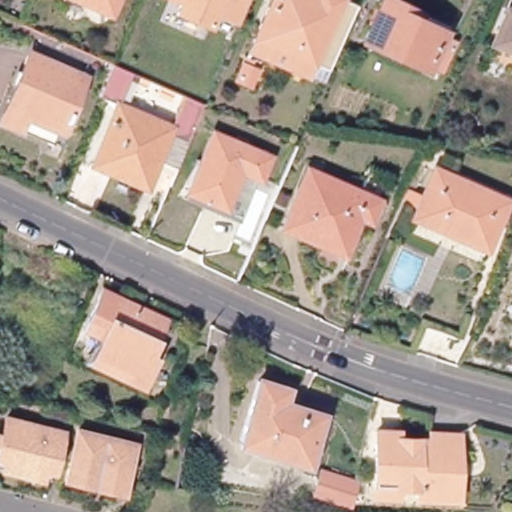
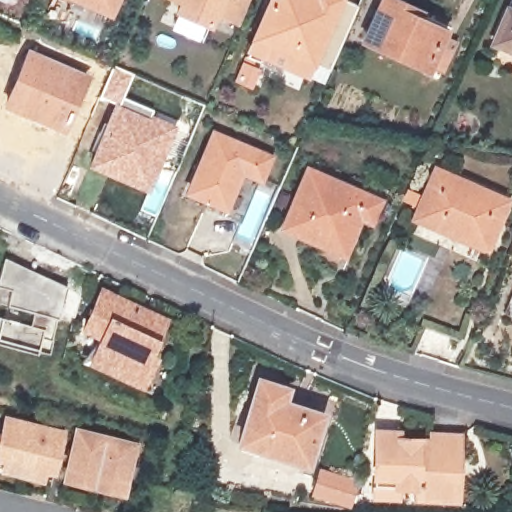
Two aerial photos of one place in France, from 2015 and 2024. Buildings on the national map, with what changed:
unchanged [(111,14),(78,0),(117,0),(111,14)]
unchanged [(215,12),(209,25),(178,12),(182,2),(177,0),(249,0),(239,22),(215,12)]
unchanged [(301,69),(245,44),(265,0),(353,0),(324,64),(319,76),(301,69)]
unchanged [(431,74),(417,67),(356,40),(373,0),(383,0),(404,10),(401,16),(433,30),(447,36),(431,74)]
unchanged [(494,43),(508,9),(512,10),(512,51),(494,43)]
unchanged [(249,54),(246,61),(252,64),(246,80),(232,74),(242,50),(249,54)]
unchanged [(86,77),(61,133),(25,117),(20,130),(0,122),(30,53),(86,77)]
unchanged [(119,111),(173,133),(184,100),(204,110),(188,147),(170,140),(148,194),(131,186),(136,175),(115,166),(110,177),(93,170),(118,110),(99,102),(113,70),(132,78),(119,111)]
unchanged [(189,185),(214,126),(269,150),(240,216),(221,208),(185,192),(189,185)]
unchanged [(379,200),(371,220),(360,215),(344,252),(283,226),(308,169),(379,200)]
unchanged [(421,218),(426,207),(411,201),(415,192),(430,198),(441,171),(511,200),(491,247),(421,218)]
new [(8,303),(0,301),(0,269),(3,256),(80,291),(74,314),(58,310),(49,351),(39,348),(37,353),(0,343),(0,315),(7,317),(8,303)]
unchanged [(74,360),(71,360),(75,358),(99,343),(101,338),(85,331),(89,322),(102,295),(164,324),(148,359),(154,361),(144,382),(104,363),(101,370),(74,360)]
unchanged [(307,465),(239,442),(259,380),(288,388),(283,402),(323,415),(307,465)]
unchanged [(0,421),(1,415),(57,428),(48,465),(45,475),(0,464),(0,421)]
unchanged [(372,490),(373,471),(376,426),(400,427),(399,433),(431,435),(431,430),(462,431),(460,456),(454,456),(452,495),(415,492),(415,482),(395,481),(395,491),(372,490)]
unchanged [(61,474),(63,465),(73,427),(128,441),(119,478),(117,488),(61,474)]
unchanged [(350,505),(313,493),(321,469),(356,480),(350,505)]

